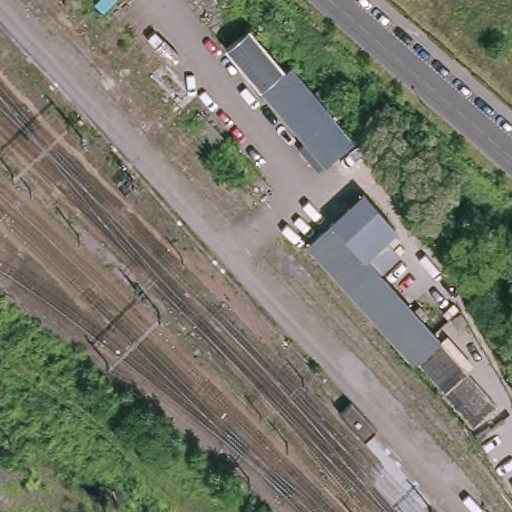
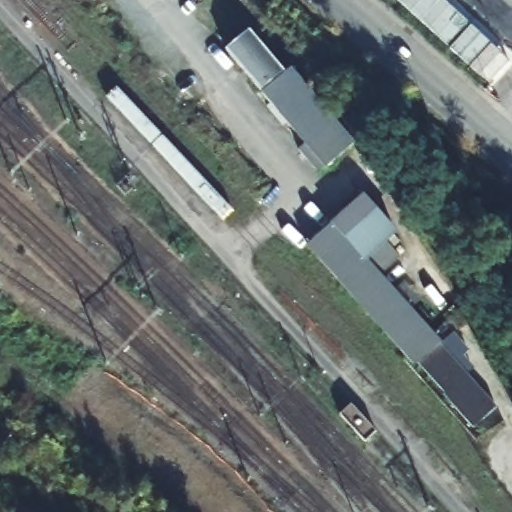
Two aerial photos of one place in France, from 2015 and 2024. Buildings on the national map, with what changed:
unchanged [(315,173),(297,151),(307,140),(225,43),(250,21),(353,140),(315,173)]
unchanged [(398,228),(367,258),(495,405),(471,429),(304,239),(363,192),(398,228)]

